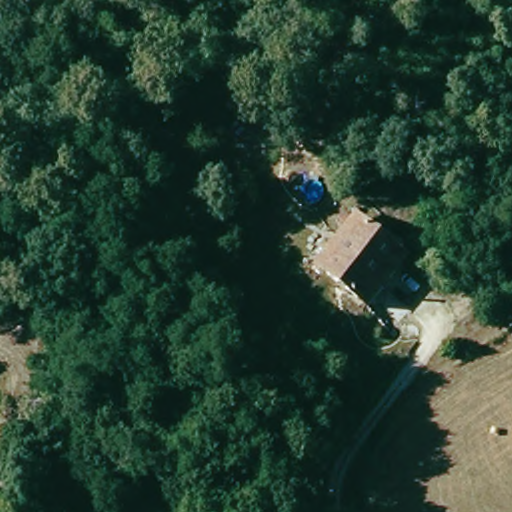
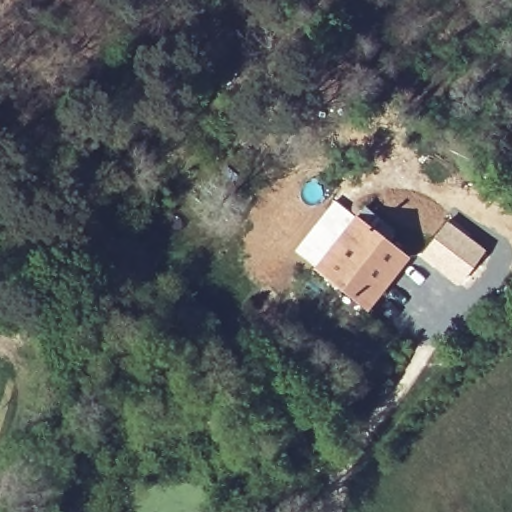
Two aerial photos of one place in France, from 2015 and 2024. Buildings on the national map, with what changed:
new [(447,220),(485,250),(457,286),(417,256),(447,220)]
unchanged [(318,273),(357,221),(407,260),(368,310),(318,273)]

